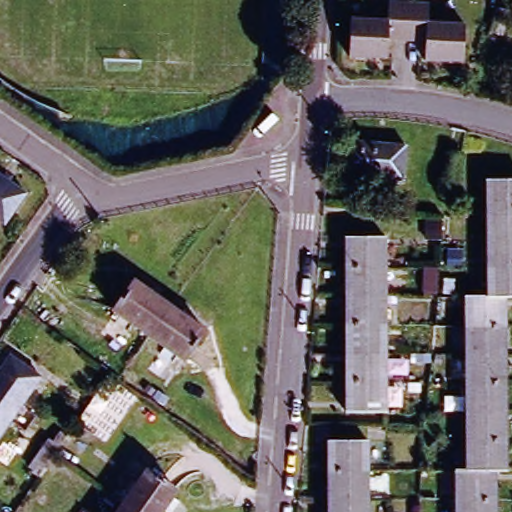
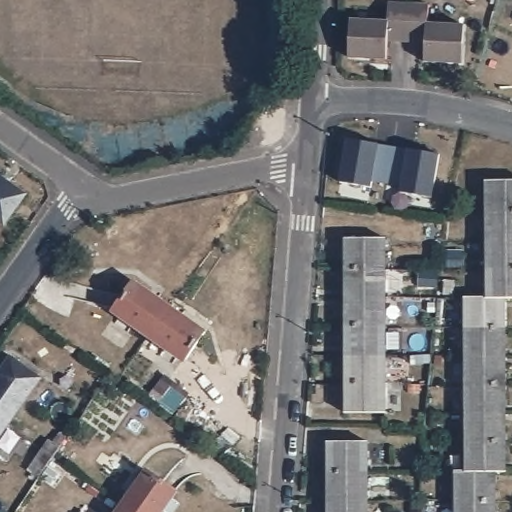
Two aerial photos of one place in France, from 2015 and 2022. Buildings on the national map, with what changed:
unchanged [(388,24),(386,42),(349,40),(351,2),(388,5),(389,0),(408,0),(407,26),(388,24)]
unchanged [(425,7),(463,9),(461,47),(423,45),(424,27),(407,26),(408,0),(425,0),(425,7)]
demolished [(497,7),(508,11),(502,31),(491,27),(497,7)]
new [(401,192),(403,184),(373,179),(372,188),(340,182),(347,137),(440,154),(431,197),(401,192)]
demolished [(402,149),(401,182),(342,180),(343,146),(402,149)]
demolished [(443,196),(448,156),(463,157),(458,197),(443,196)]
unchanged [(5,230),(0,226),(0,179),(27,198),(5,230)]
unchanged [(491,184),(512,184),(512,302),(507,302),(490,302),(491,184)]
unchanged [(382,242),(382,416),(343,416),(342,242),(382,242)]
unchanged [(167,311),(145,341),(108,314),(130,284),(167,311)]
unchanged [(507,302),(507,478),(495,478),(468,478),(470,302),(490,302),(507,302)]
unchanged [(203,337),(182,367),(145,341),(167,311),(203,337)]
unchanged [(0,427),(0,375),(9,362),(39,383),(5,431),(0,427)]
unchanged [(0,427),(5,431),(0,439),(0,427)]
unchanged [(40,464),(34,460),(41,449),(48,440),(53,443),(60,433),(67,437),(53,457),(39,478),(32,473),(40,464)]
unchanged [(369,444),(368,512),(329,512),(330,443),(369,444)]
unchanged [(178,495),(166,512),(128,512),(122,508),(147,472),(178,495)]
unchanged [(458,512),(458,478),(468,478),(495,478),(495,512),(458,512)]
unchanged [(128,512),(120,512),(122,508),(128,512)]

